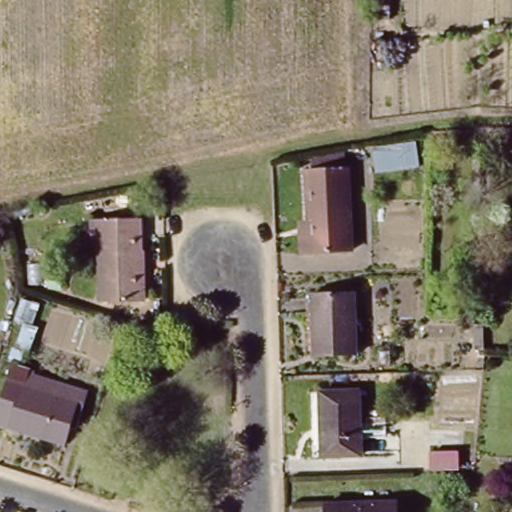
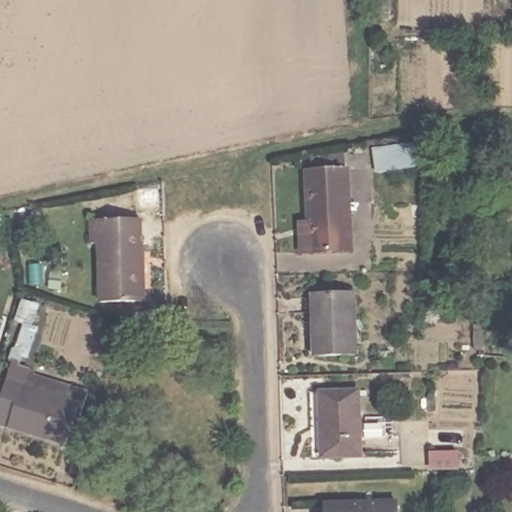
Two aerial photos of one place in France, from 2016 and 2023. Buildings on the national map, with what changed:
unchanged [(345,249),(306,251),(303,172),(342,171),(345,249)]
unchanged [(146,302),(106,304),(104,246),(95,246),(94,222),(142,220),(146,302)]
unchanged [(354,355),(311,356),(310,294),(353,293),(354,355)]
unchanged [(78,430),(73,428),(65,451),(0,429),(0,405),(12,368),(28,373),(27,376),(89,397),(78,430)]
unchanged [(361,455),(324,456),(321,391),(359,390),(361,455)]
unchanged [(323,512),(323,504),(392,503),(392,512),(323,512)]

